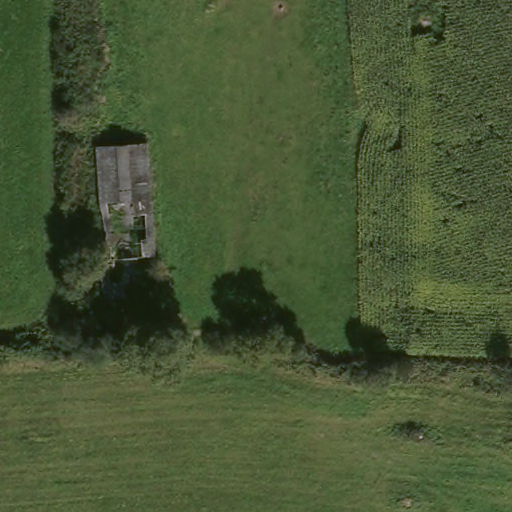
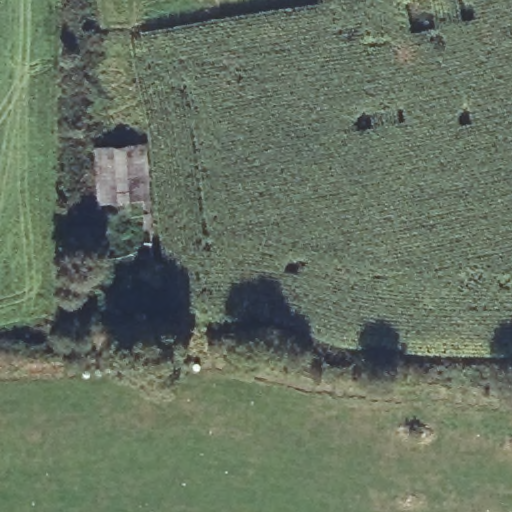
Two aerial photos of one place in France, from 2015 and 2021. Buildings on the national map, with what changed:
unchanged [(105,307),(94,150),(148,147),(155,305),(105,307)]

